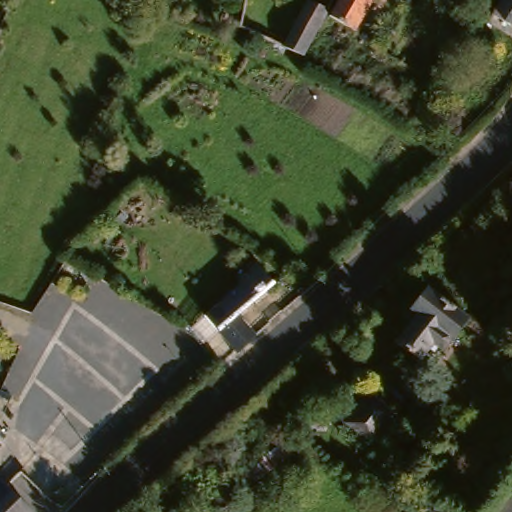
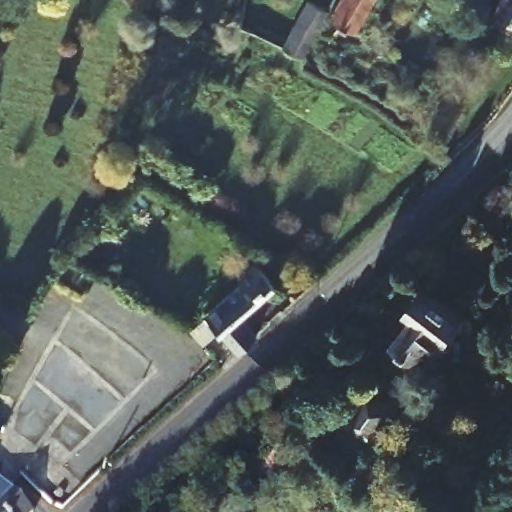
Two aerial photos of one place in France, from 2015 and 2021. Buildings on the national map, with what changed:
unchanged [(235,20),(237,0),(264,0),(259,24),(235,20)]
unchanged [(340,0),(374,0),(354,35),(329,21),(340,0)]
unchanged [(483,0),(487,0),(486,1),(483,0)]
unchanged [(489,20),(498,0),(512,0),(512,32),(489,20)]
unchanged [(274,42),(285,47),(307,7),(326,17),(299,64),(281,55),(270,50),(274,42)]
unchanged [(273,293),(236,323),(256,344),(236,362),(215,342),(206,349),(191,333),(235,294),(236,282),(252,270),(273,293)]
unchanged [(438,360),(434,356),(428,362),(422,358),(418,363),(411,369),(390,351),(404,334),(411,326),(404,320),(424,298),(463,329),(438,360)]
unchanged [(393,420),(371,451),(337,425),(358,395),(393,420)]
unchanged [(0,490),(22,512),(0,512),(0,490)]
unchanged [(512,494),(512,512),(497,512),(512,494)]

